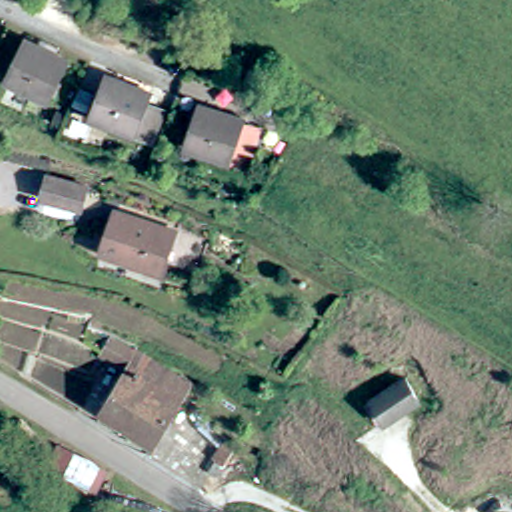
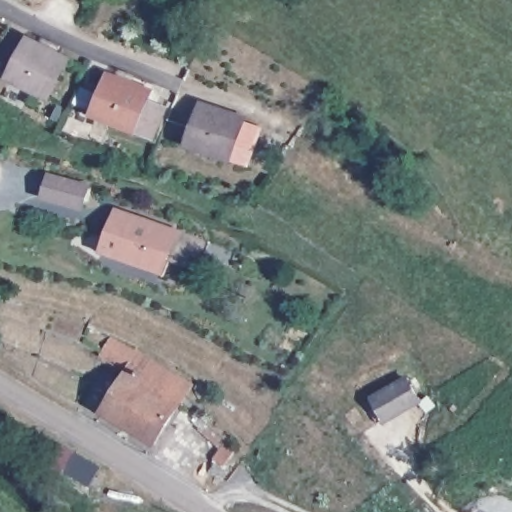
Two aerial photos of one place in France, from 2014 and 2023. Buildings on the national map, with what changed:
unchanged [(56,99),(15,79),(34,40),(75,60),(56,99)]
unchanged [(143,135),(103,117),(120,79),(159,96),(143,135)]
unchanged [(234,164),(192,150),(206,107),(248,122),(234,164)]
unchanged [(48,180),(90,191),(85,210),(43,199),(48,180)]
unchanged [(165,272),(114,250),(125,219),(127,215),(177,237),(176,241),(165,272)]
unchanged [(157,447),(103,425),(127,371),(100,360),(107,345),(133,357),(187,383),(157,447)]
unchanged [(398,378),(410,399),(383,415),(371,395),(398,378)]

